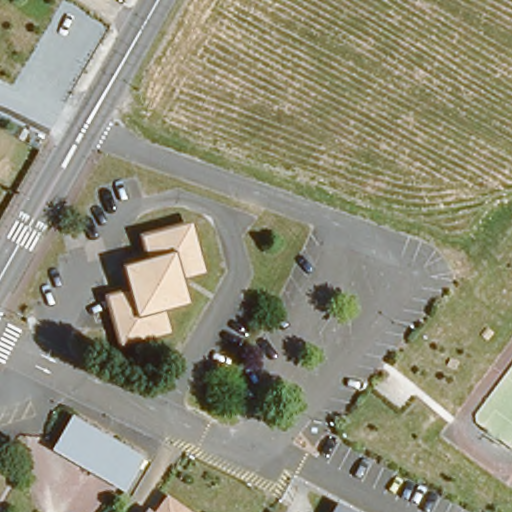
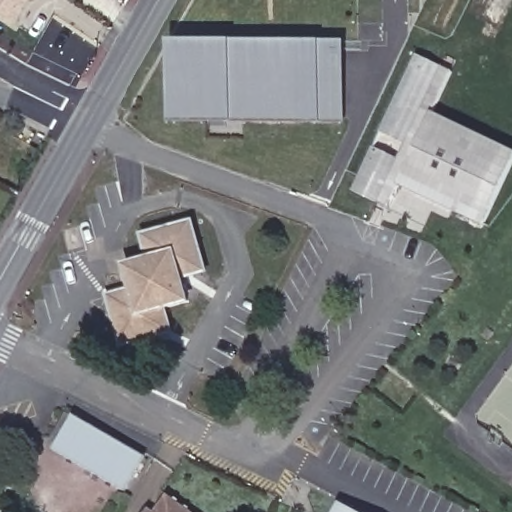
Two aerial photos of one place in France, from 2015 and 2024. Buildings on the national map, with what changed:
new [(8,21),(0,15),(0,0),(23,0),(8,21)]
new [(319,121),(232,121),(169,120),(168,39),(232,39),(319,40),(344,40),(344,121),(319,121)]
new [(379,201),(353,188),(417,56),(452,73),(432,115),(512,153),(512,165),(484,223),(400,182),(394,194),(389,206),(379,201)]
unchanged [(144,233),(192,220),(204,268),(182,274),(188,299),(164,306),(171,329),(122,342),(107,294),(131,288),(128,277),(124,263),(139,259),(149,256),(144,233)]
unchanged [(132,485),(45,431),(62,402),(101,427),(93,441),(101,447),(110,432),(149,456),(132,485)]
unchanged [(154,507),(165,491),(196,512),(141,512),(147,502),(154,507)]
unchanged [(333,512),(339,501),(358,512),(333,512)]

